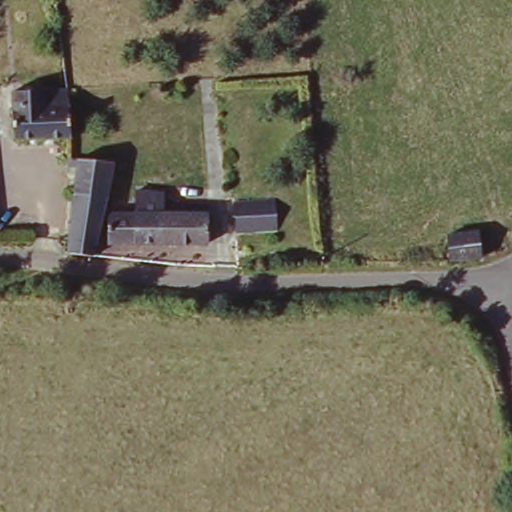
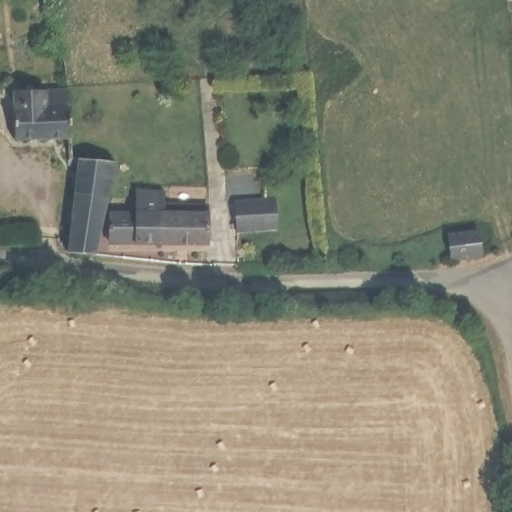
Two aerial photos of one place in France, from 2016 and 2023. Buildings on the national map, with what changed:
unchanged [(22,141),(19,90),(76,86),(78,137),(22,141)]
unchanged [(87,163),(110,165),(99,256),(78,253),(87,163)]
unchanged [(117,213),(146,214),(145,198),(171,197),(171,211),(210,211),(211,246),(118,246),(117,213)]
unchanged [(284,199),(286,229),(245,231),(243,203),(284,199)]
unchanged [(448,234),(478,235),(475,255),(445,258),(448,234)]
unchanged [(485,295),(512,302),(512,308),(506,331),(478,323),(485,295)]

